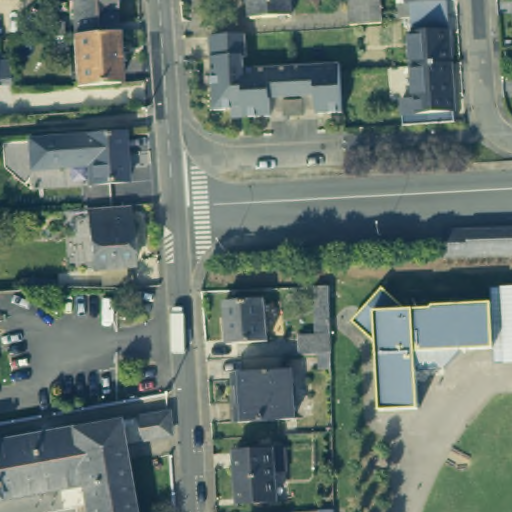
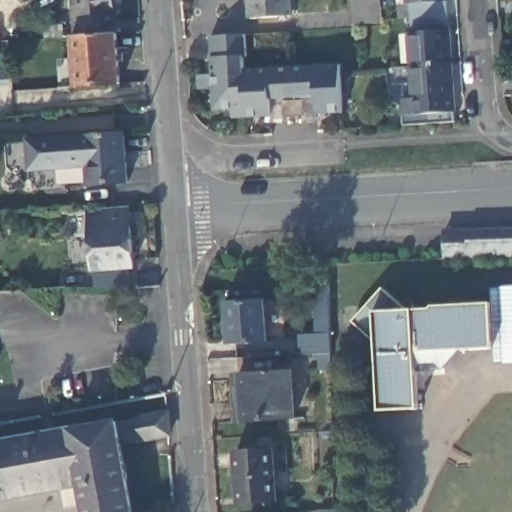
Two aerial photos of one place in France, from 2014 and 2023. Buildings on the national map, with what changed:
unchanged [(114,0),(117,35),(77,38),(75,0),(114,0)]
unchanged [(247,22),(246,0),(286,0),(287,19),(247,22)]
unchanged [(381,0),(383,18),(383,22),(353,24),(351,0),(381,0)]
unchanged [(412,17),(411,10),(400,11),(399,0),(445,0),(446,8),(447,14),(449,56),(411,59),(409,26),(412,26),(412,17)]
unchanged [(63,28),(64,39),(47,40),(46,29),(63,28)]
unchanged [(120,84),(77,87),(73,38),(77,38),(117,35),(120,84)]
unchanged [(246,38),(247,60),(244,60),(245,73),(340,68),(340,72),(341,87),(342,117),(341,117),(317,118),(316,100),(270,102),(271,121),(232,122),(232,113),(214,114),(213,95),(210,40),(246,38)]
unchanged [(452,101),(453,114),(408,117),(403,117),(401,92),(414,91),(411,59),(449,56),(452,101)]
unchanged [(286,121),(285,104),(302,103),(303,119),(286,121)]
unchanged [(127,186),(89,188),(88,168),(67,169),(32,171),(30,143),(66,141),(124,137),(127,186)]
unchanged [(128,266),(88,269),(84,210),(124,207),(128,266)]
unchanged [(512,227),(512,255),(444,257),(443,229),(512,227)]
unchanged [(494,288),(494,285),(512,284),(512,358),(494,359),(492,347),(490,301),(489,288),(494,288)]
unchanged [(492,347),(460,349),(440,368),(415,369),(417,407),(378,409),(375,342),(351,319),(381,287),(404,307),(430,307),(432,304),(490,301),(492,347)]
unchanged [(297,338),(315,338),(314,289),(327,288),(329,356),(298,358),(297,338)]
unchanged [(261,298),(263,338),(225,340),(223,300),(261,298)]
unchanged [(237,420),(236,399),(241,399),(240,372),(293,369),(295,417),(237,420)]
unchanged [(121,410),(141,406),(143,417),(123,421),(121,410)]
unchanged [(80,485),(0,499),(0,444),(127,421),(147,417),(168,414),(170,436),(122,443),(132,512),(84,512),(80,485)]
unchanged [(277,450),(279,469),(269,470),(271,502),(235,505),(231,453),(277,450)]
unchanged [(324,510),(337,509),(337,512),(324,512),(324,510)]

